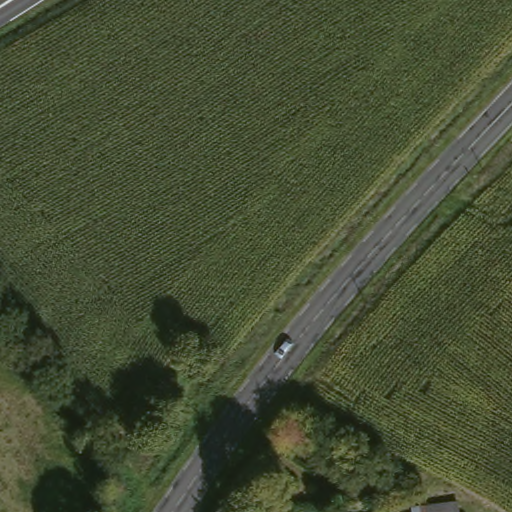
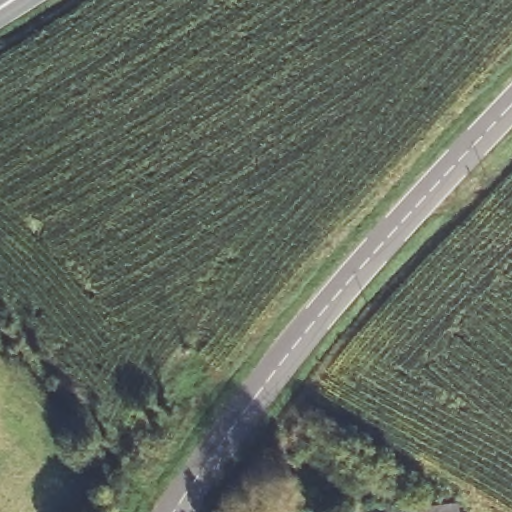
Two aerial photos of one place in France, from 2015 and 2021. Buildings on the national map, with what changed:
unchanged [(415,500),(459,498),(461,512),(416,512),(415,500)]

